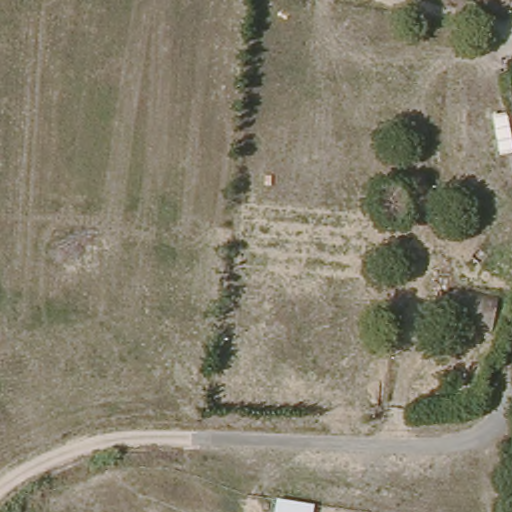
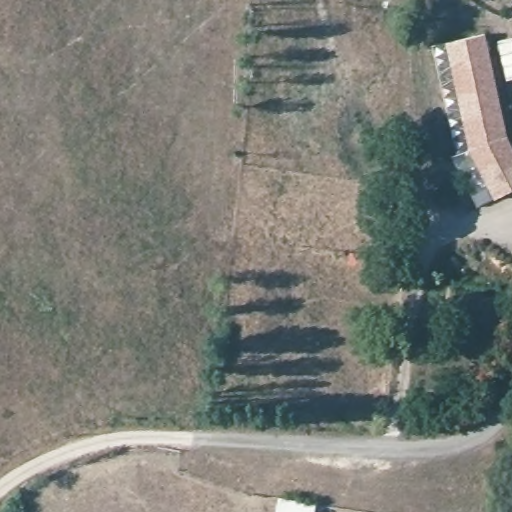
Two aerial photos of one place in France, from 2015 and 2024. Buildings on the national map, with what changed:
new [(507,136),(512,147),(512,192),(495,201),(469,149),(445,42),(485,34),(507,136)]

